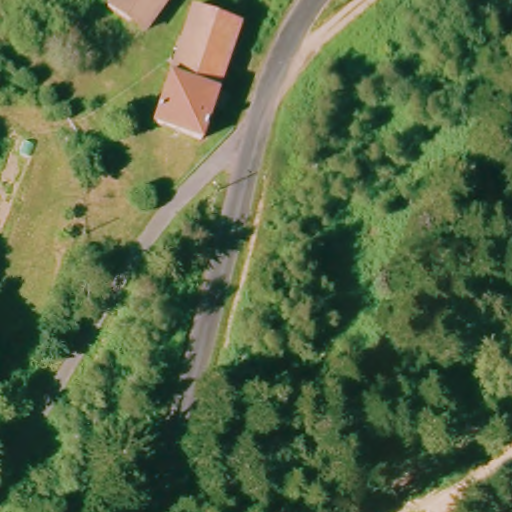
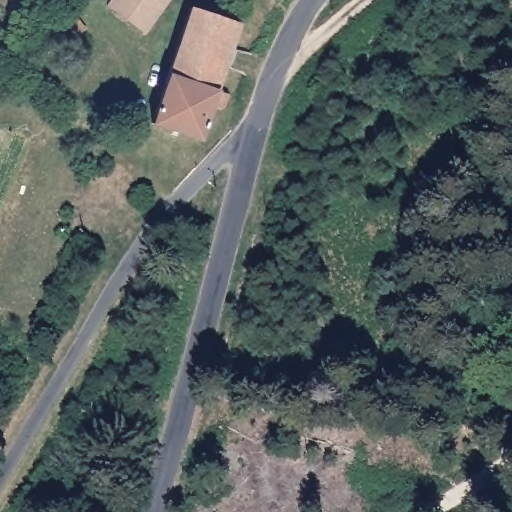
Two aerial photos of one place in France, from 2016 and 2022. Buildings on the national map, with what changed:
unchanged [(111,10),(118,0),(170,0),(148,35),(111,10)]
unchanged [(217,97),(230,102),(226,116),(213,114),(203,147),(151,130),(191,13),(239,32),(217,97)]

